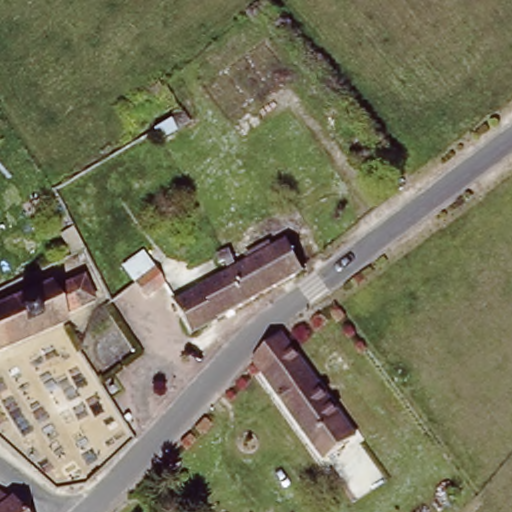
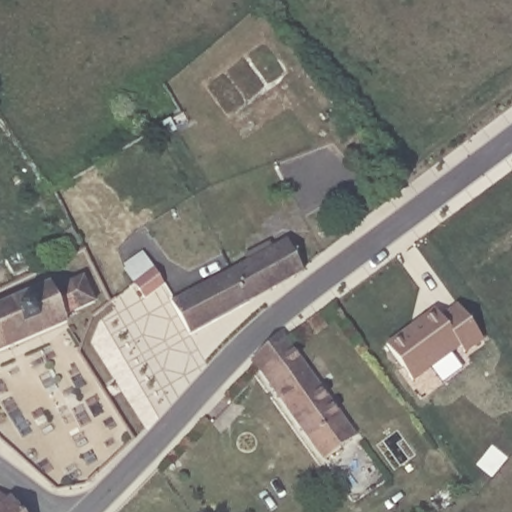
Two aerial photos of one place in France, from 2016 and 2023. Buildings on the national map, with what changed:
unchanged [(287,243),(305,271),(192,328),(175,298),(287,243)]
unchanged [(56,280),(80,268),(92,290),(69,305),(74,312),(2,355),(0,351),(0,303),(50,273),(56,280)]
new [(465,355),(460,347),(414,381),(387,345),(437,308),(441,315),(457,302),(485,341),(465,355)]
unchanged [(290,340),(359,435),(329,455),(260,362),(257,358),(285,333),(290,340)]
unchanged [(12,500),(17,496),(30,512),(0,512),(0,488),(2,487),(12,500)]

